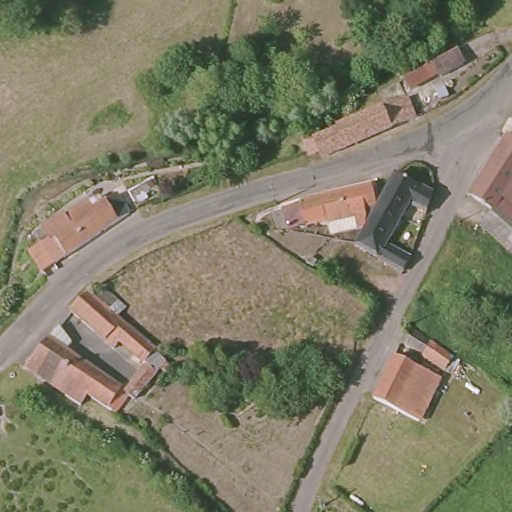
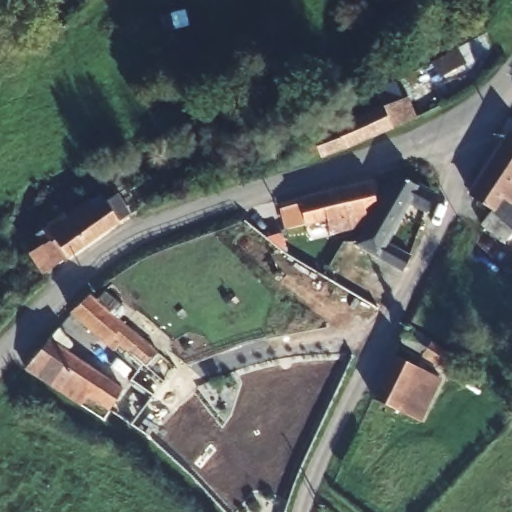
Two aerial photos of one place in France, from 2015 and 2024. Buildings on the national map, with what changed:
unchanged [(472,64),(448,77),(445,73),(417,89),(410,74),(462,46),(472,64)]
unchanged [(453,85),(457,96),(445,100),(442,89),(453,85)]
unchanged [(332,156),(330,150),(315,157),(312,153),(309,140),(343,127),(342,124),(411,95),(420,118),(332,156)]
unchanged [(493,218),(470,198),(512,143),(512,242),(505,249),(483,230),(493,218)]
unchanged [(360,246),(398,174),(437,192),(429,211),(407,202),(388,244),(403,251),(415,219),(425,223),(405,272),(402,271),(360,246)]
unchanged [(372,180),(376,199),(362,204),(365,217),(332,227),(327,215),(292,228),(285,208),(372,180)]
unchanged [(36,231),(65,211),(68,213),(88,199),(90,202),(98,197),(103,202),(117,193),(130,211),(58,264),(36,231)]
unchanged [(320,255),(316,261),(309,256),(312,250),(320,255)]
unchanged [(167,375),(157,368),(150,382),(145,389),(143,392),(133,386),(129,382),(142,362),(115,341),(109,348),(65,312),(86,292),(87,293),(90,295),(92,297),(95,299),(102,289),(122,305),(125,308),(120,316),(117,320),(137,337),(157,354),(172,367),(167,375)]
unchanged [(460,353),(448,368),(402,336),(411,320),(460,353)]
unchanged [(75,389),(68,397),(27,368),(52,325),(69,338),(60,349),(128,395),(117,413),(75,389)]
unchanged [(444,384),(422,426),(378,399),(400,360),(444,384)]

